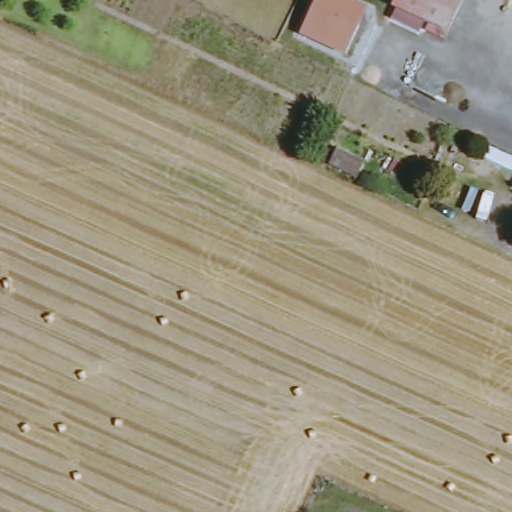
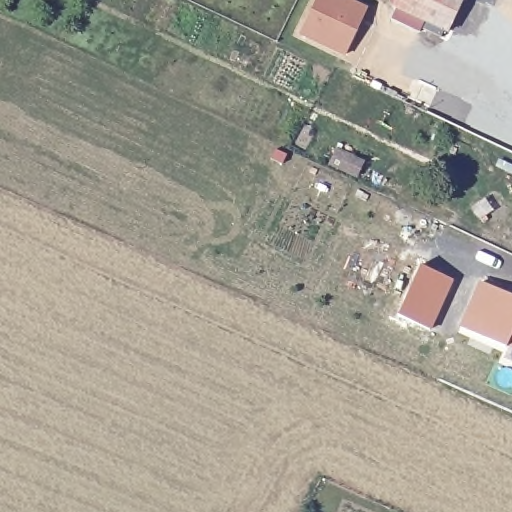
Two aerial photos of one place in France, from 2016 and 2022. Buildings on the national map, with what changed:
unchanged [(299,35),(316,0),(350,0),(366,8),(344,56),(299,35)]
unchanged [(456,30),(400,4),(402,0),(471,0),(456,30)]
unchanged [(361,161),(352,176),(324,162),(332,147),(361,161)]
new [(432,330),(398,315),(420,265),(454,280),(432,330)]
new [(507,346),(506,348),(460,326),(479,282),(512,297),(512,349),(507,346)]

